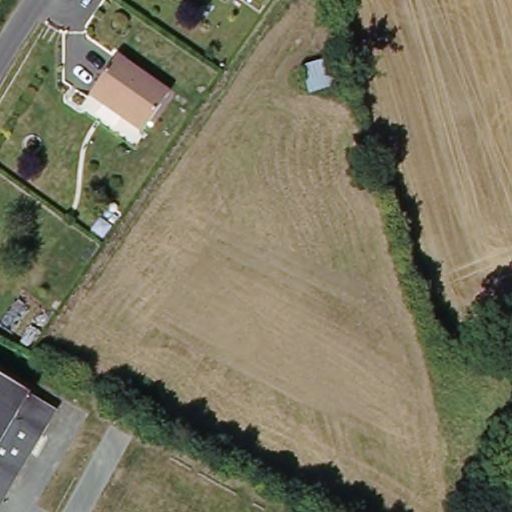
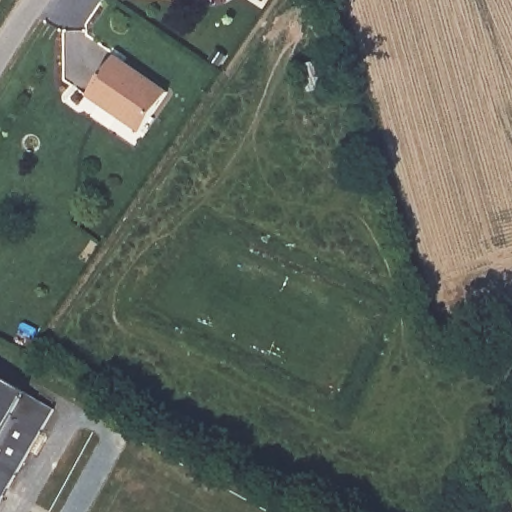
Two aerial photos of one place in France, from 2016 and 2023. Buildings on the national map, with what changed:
unchanged [(171,97),(142,136),(126,125),(129,120),(92,96),(117,61),(171,97)]
unchanged [(57,412),(0,505),(0,379),(57,412)]

